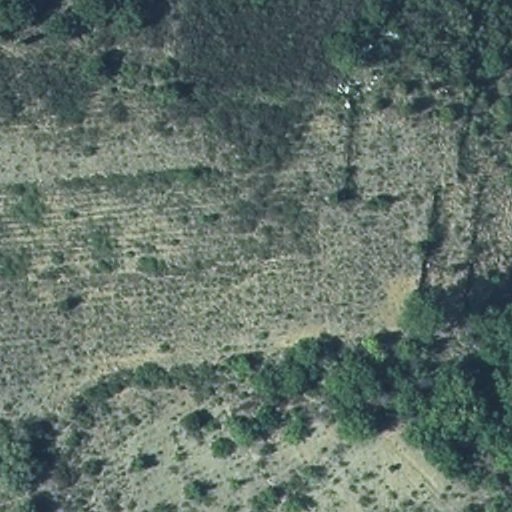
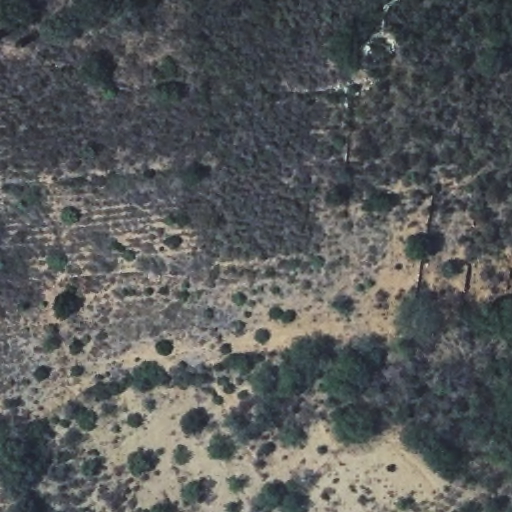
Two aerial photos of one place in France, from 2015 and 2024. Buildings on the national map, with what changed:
[]

